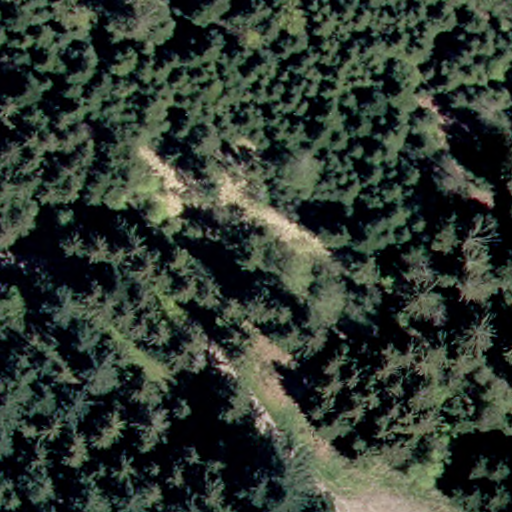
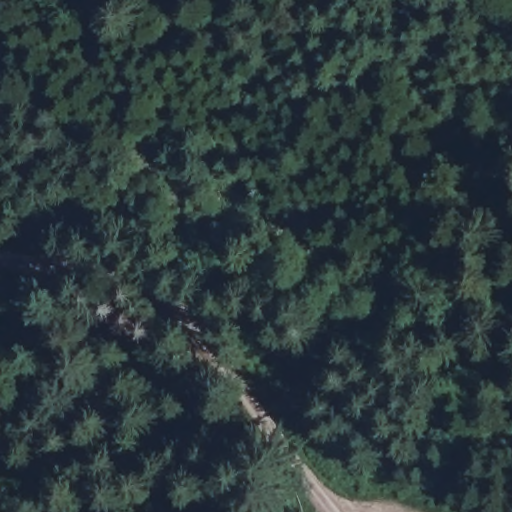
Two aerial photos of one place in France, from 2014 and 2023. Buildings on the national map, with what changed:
[]

